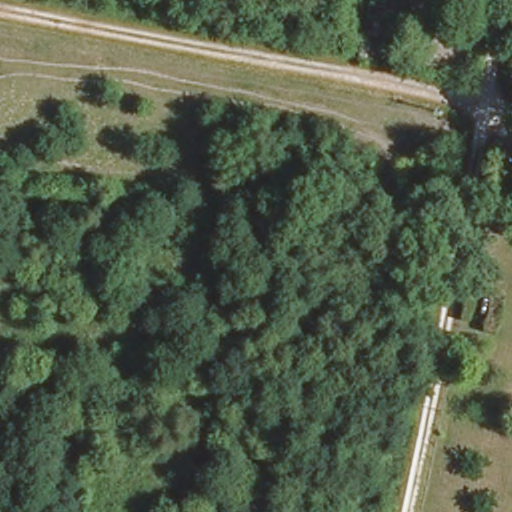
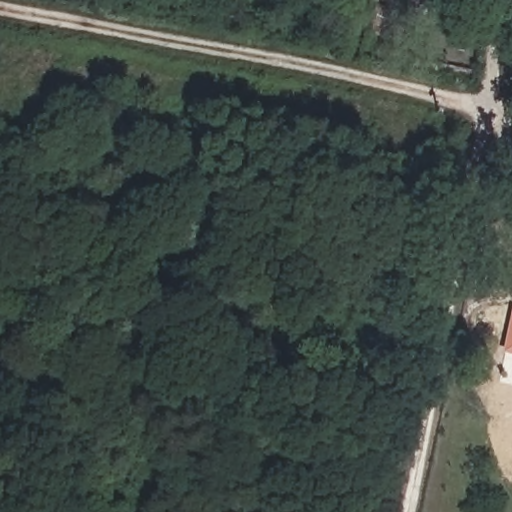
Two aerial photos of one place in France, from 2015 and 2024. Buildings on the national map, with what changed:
new [(511,308),(512,309),(512,355),(501,353),(511,308)]

